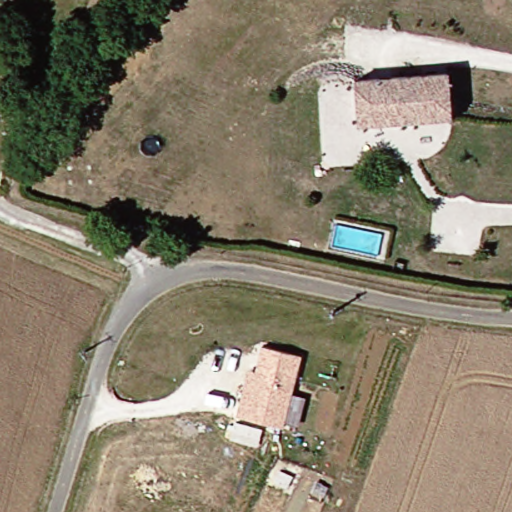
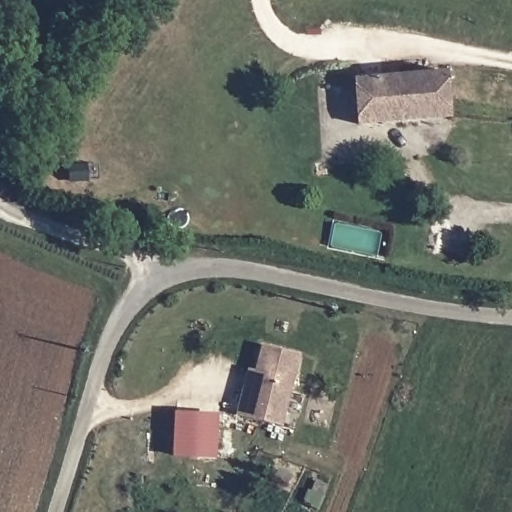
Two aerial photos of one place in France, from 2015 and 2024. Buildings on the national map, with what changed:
unchanged [(447,72),(450,117),(358,123),(355,78),(447,72)]
unchanged [(238,415),(245,388),(248,373),(255,374),(262,346),(301,354),(285,426),(238,415)]
new [(217,457),(173,456),(175,411),(218,412),(217,457)]

